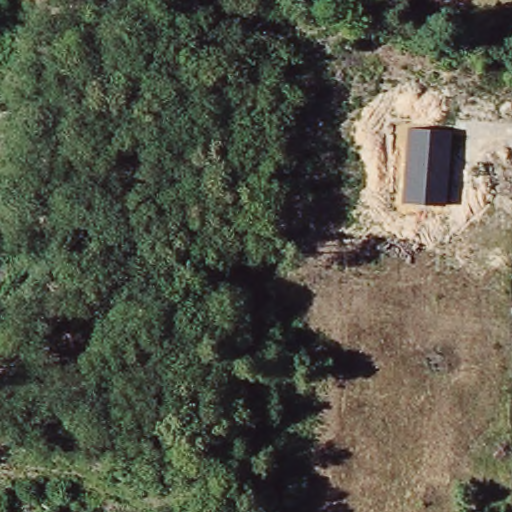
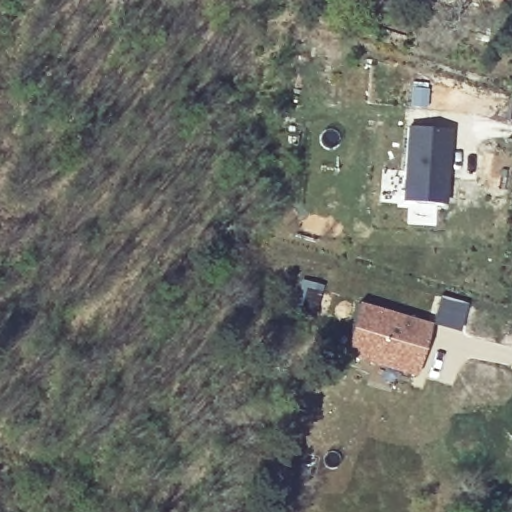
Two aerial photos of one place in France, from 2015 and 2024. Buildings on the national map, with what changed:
unchanged [(452,131),(446,205),(400,201),(406,127),(452,131)]
new [(313,318),(298,314),(293,312),(299,289),(304,290),(319,294),(313,318)]
new [(353,306),(428,328),(414,376),(340,355),(353,306)]

